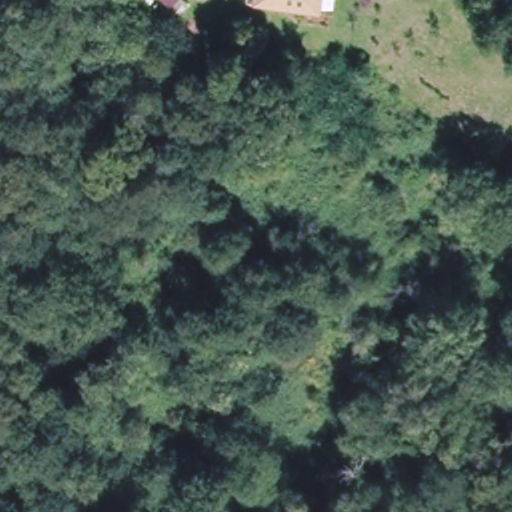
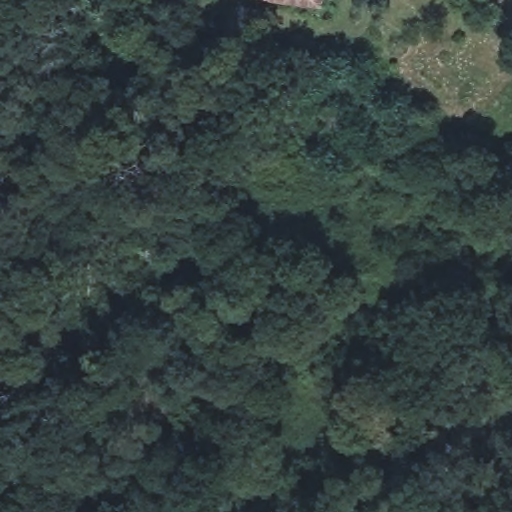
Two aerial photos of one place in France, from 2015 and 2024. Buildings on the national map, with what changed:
unchanged [(254,0),(321,0),(321,1),(310,3),(303,4),(255,5),(254,0)]

